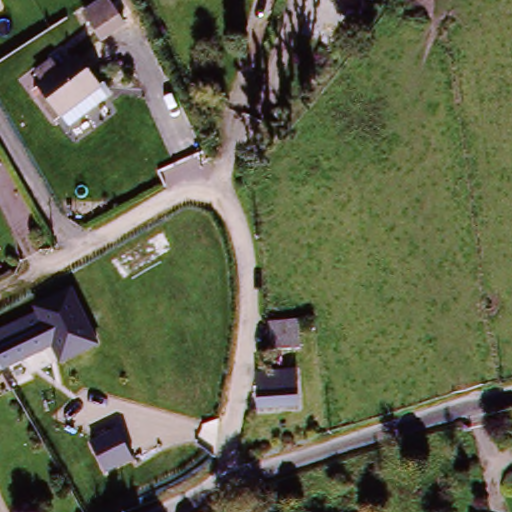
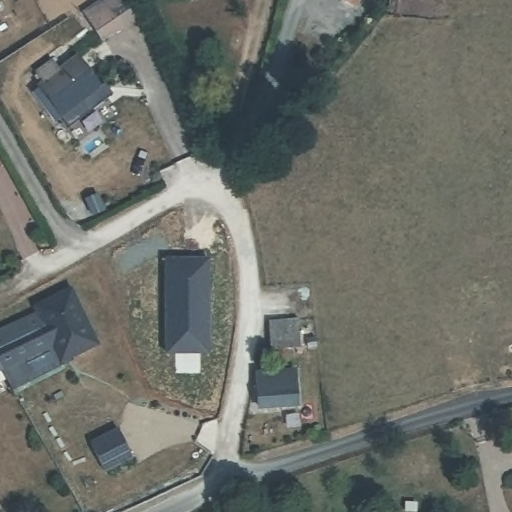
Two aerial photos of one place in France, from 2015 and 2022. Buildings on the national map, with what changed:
unchanged [(84,10),(107,0),(122,0),(132,27),(130,29),(96,42),(84,10)]
unchanged [(332,0),(359,0),(356,9),(332,0)]
unchanged [(43,110),(29,76),(43,70),(37,57),(61,47),(66,60),(84,54),(99,86),(50,107),(43,110)]
unchanged [(107,105),(57,124),(50,107),(99,86),(107,105)]
new [(209,260),(210,351),(166,351),(165,259),(209,260)]
unchanged [(60,363),(52,347),(0,372),(0,328),(37,310),(34,305),(72,288),(99,347),(60,363)]
unchanged [(268,322),(301,321),(301,347),(267,348),(268,322)]
unchanged [(298,410),(261,410),(257,383),(260,378),(296,380),(298,410)]
unchanged [(115,415),(127,433),(101,451),(89,434),(115,415)]

